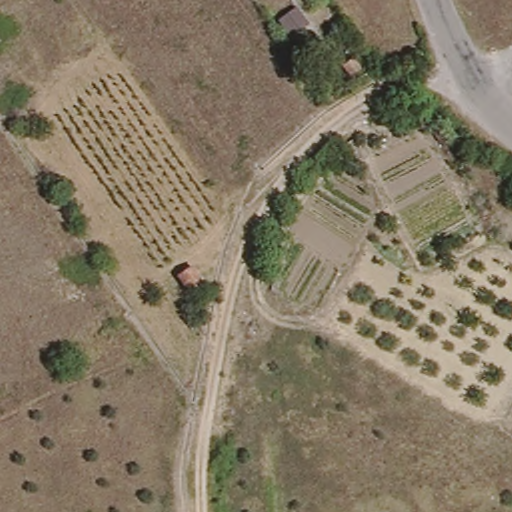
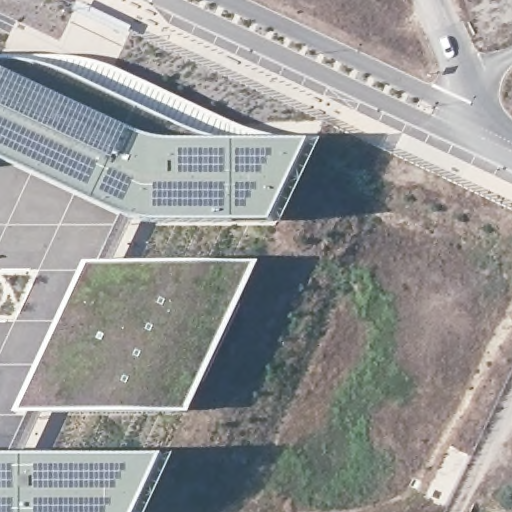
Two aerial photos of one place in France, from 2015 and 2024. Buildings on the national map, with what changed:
demolished [(277,18),(301,7),(314,28),(290,39),(277,18)]
new [(157,224),(147,222),(130,217),(0,158),(0,64),(28,64),(69,74),(190,132),(210,138),(224,145),(311,145),(276,223),(157,224)]
demolished [(340,70),(351,64),(355,73),(346,79),(340,70)]
new [(191,416),(20,414),(88,265),(260,266),(191,416)]
demolished [(208,284),(193,294),(182,279),(197,268),(208,284)]
new [(0,460),(166,460),(140,512),(0,512),(0,460)]

